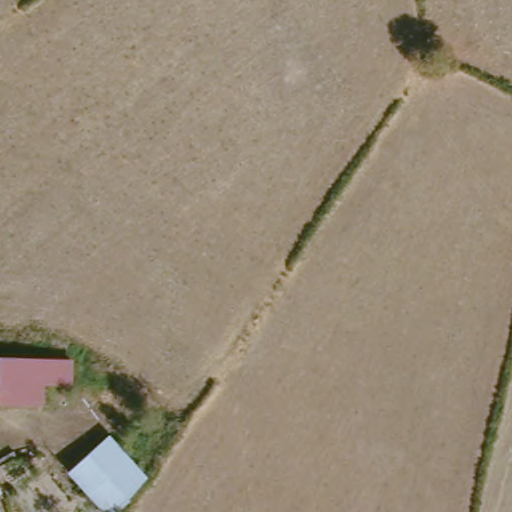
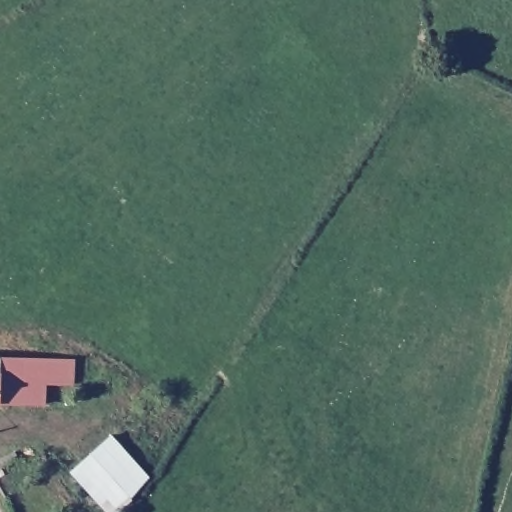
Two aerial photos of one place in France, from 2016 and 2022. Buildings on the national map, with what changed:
unchanged [(81,395),(80,403),(0,405),(0,357),(80,356),(82,374),(105,396),(97,405),(81,395)]
unchanged [(109,447),(150,489),(132,509),(88,465),(109,447)]

